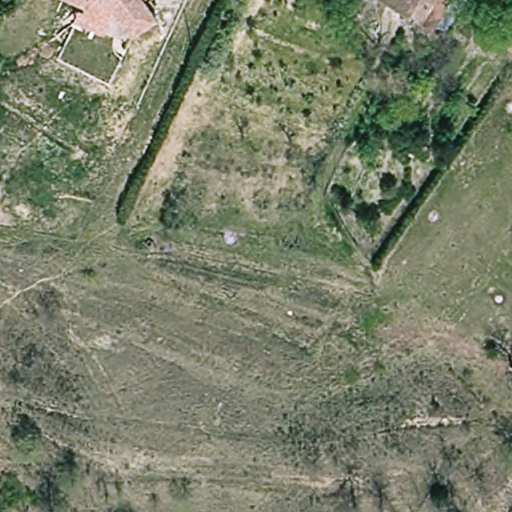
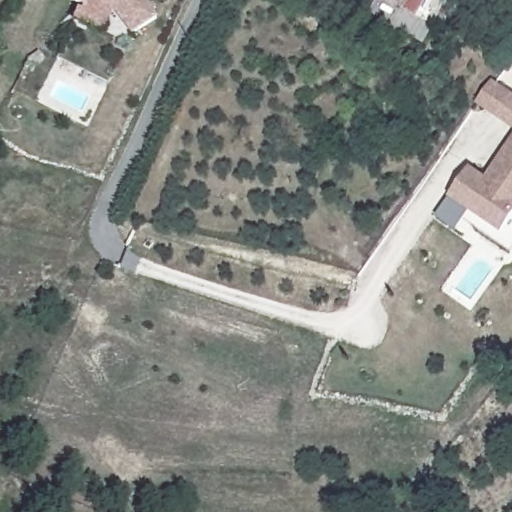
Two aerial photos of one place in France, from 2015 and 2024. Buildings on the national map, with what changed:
unchanged [(138,37),(120,11),(95,2),(92,10),(62,0),(146,0),(161,20),(138,37)]
unchanged [(392,0),(454,0),(441,25),(392,0)]
unchanged [(413,56),(445,67),(440,80),(409,70),(413,56)]
new [(493,80),(512,93),(512,127),(476,102),(493,80)]
new [(449,196),(470,166),(486,177),(512,138),(512,219),(503,232),(449,196)]

